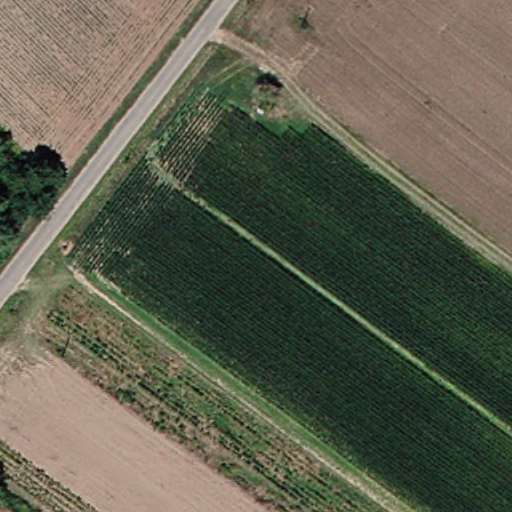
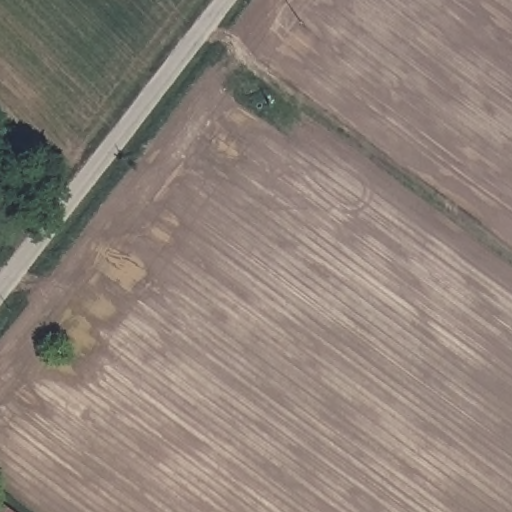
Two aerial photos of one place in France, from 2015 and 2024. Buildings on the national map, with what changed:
unchanged [(1,512),(0,512),(0,511),(1,512)]

